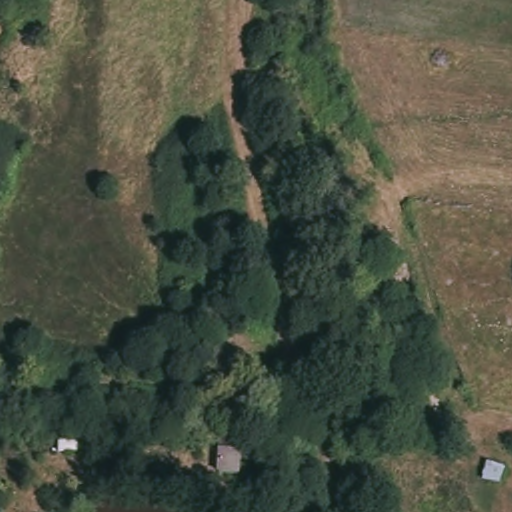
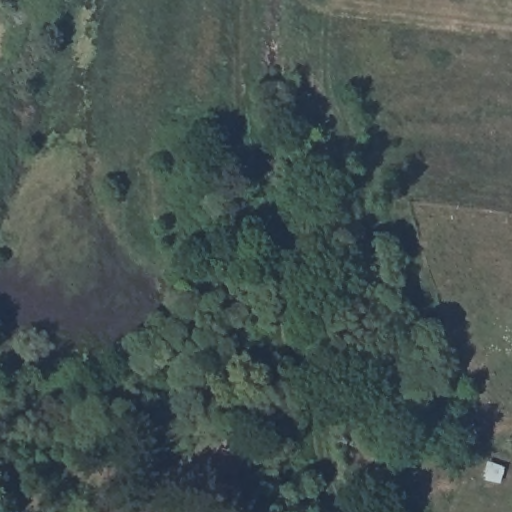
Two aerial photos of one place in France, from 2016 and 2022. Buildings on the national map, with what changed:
unchanged [(218,432),(241,434),(241,452),(240,477),(216,476),(217,451),(218,432)]

